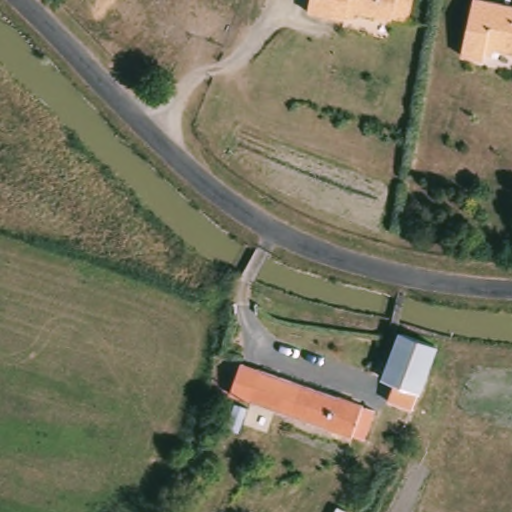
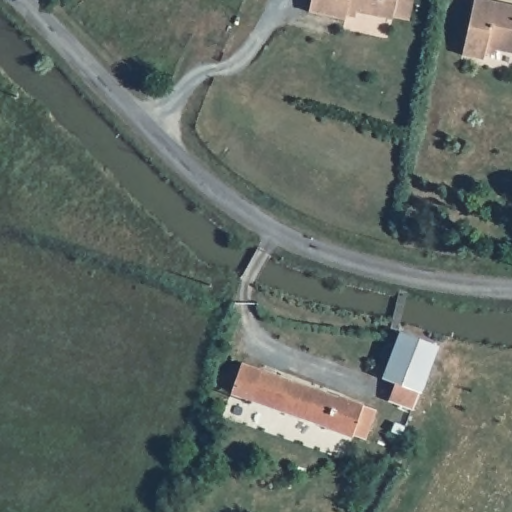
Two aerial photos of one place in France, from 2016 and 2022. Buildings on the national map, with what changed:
unchanged [(385,18),(385,21),(340,11),(337,22),(301,14),(303,1),(304,0),(406,0),(401,21),(385,18)]
unchanged [(512,13),(512,60),(478,53),(475,65),(455,61),(467,3),(512,13)]
unchanged [(432,347),(416,382),(381,364),(397,331),(432,347)]
unchanged [(416,382),(407,401),(399,417),(373,405),(382,388),(371,383),(381,364),(416,382)]
unchanged [(365,443),(358,441),(357,444),(232,398),(242,367),(375,415),(365,443)]

